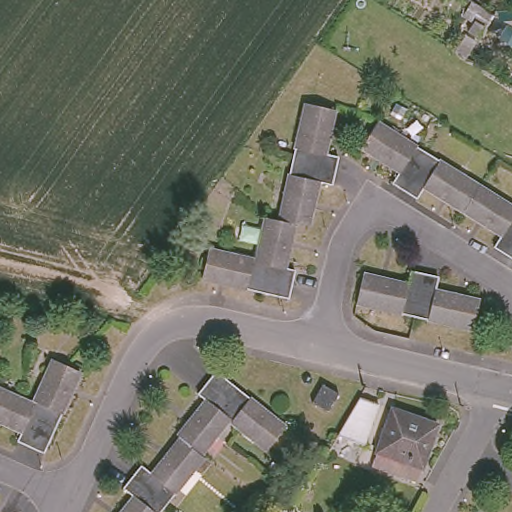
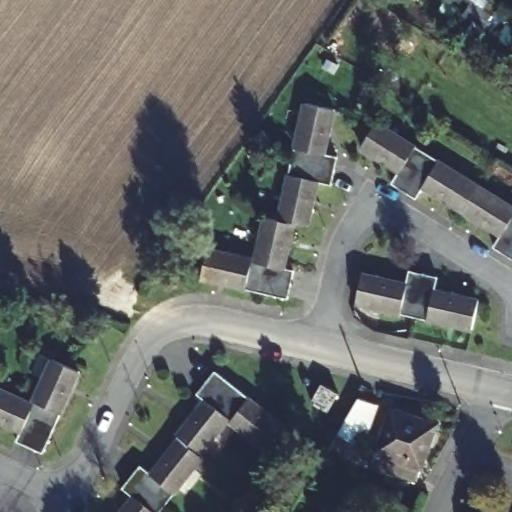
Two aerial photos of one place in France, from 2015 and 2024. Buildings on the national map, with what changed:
unchanged [(496,15),(487,28),(475,21),(484,7),(496,15)]
unchanged [(456,51),(467,33),(479,41),(468,58),(456,51)]
unchanged [(336,112),(326,155),(340,158),(333,184),(320,181),(310,226),(280,219),(307,105),(336,112)]
unchanged [(461,209),(423,185),(415,197),(392,183),(400,170),(362,147),(378,121),(477,183),(461,209)]
unchanged [(512,257),(493,245),(500,234),(463,210),(480,184),(512,204),(512,257)]
unchanged [(294,225),(285,269),(294,271),(287,299),(200,279),(207,250),(255,260),(265,219),(294,225)]
unchanged [(412,272),(438,279),(435,292),(480,303),(472,333),(358,305),(365,276),(408,287),(412,272)]
unchanged [(80,372),(43,453),(16,442),(20,433),(0,424),(0,391),(32,404),(52,360),(80,372)]
unchanged [(202,399),(195,394),(213,370),(284,423),(266,447),(226,417),(200,453),(176,435),(202,399)]
unchanged [(338,390),(327,409),(311,400),(322,381),(338,390)]
unchanged [(330,452),(361,396),(380,403),(350,461),(330,452)]
unchanged [(446,414),(426,472),(379,457),(398,398),(446,414)]
unchanged [(162,512),(124,512),(135,498),(123,490),(141,467),(151,475),(178,440),(202,458),(162,512)]

